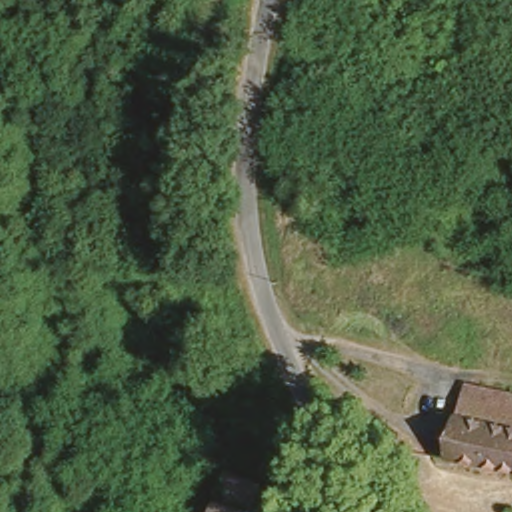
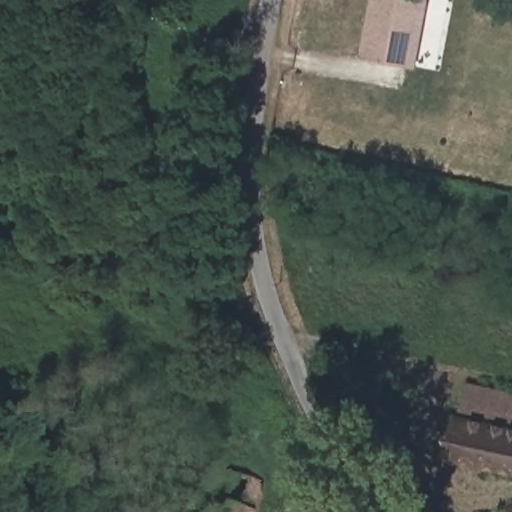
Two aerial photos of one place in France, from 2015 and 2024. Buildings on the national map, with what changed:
new [(360,59),(371,0),(430,0),(417,70),(360,59)]
unchanged [(467,384),(512,395),(512,470),(451,455),(467,384)]
unchanged [(229,472),(263,484),(250,512),(211,512),(216,499),(229,472)]

